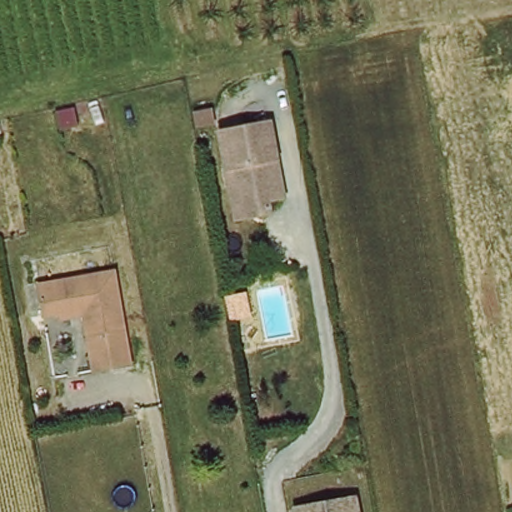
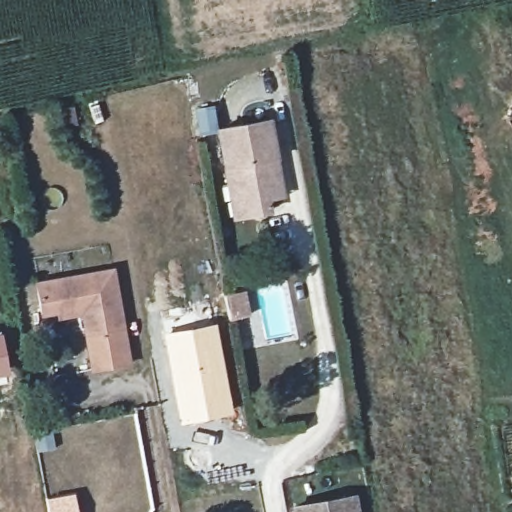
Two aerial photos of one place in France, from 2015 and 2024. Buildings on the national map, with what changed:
unchanged [(233,222),(225,173),(218,136),(268,128),(280,202),(265,204),(267,217),(233,222)]
unchanged [(114,275),(132,369),(95,376),(83,314),(43,321),(37,289),(114,275)]
new [(253,316),(234,320),(230,297),(248,293),(253,316)]
new [(215,323),(232,414),(178,424),(162,333),(215,323)]
new [(0,386),(0,331),(7,385),(0,386)]
unchanged [(359,504),(361,512),(310,512),(359,504)]

